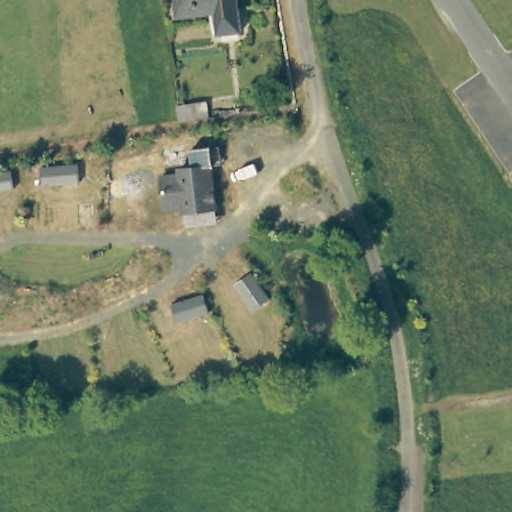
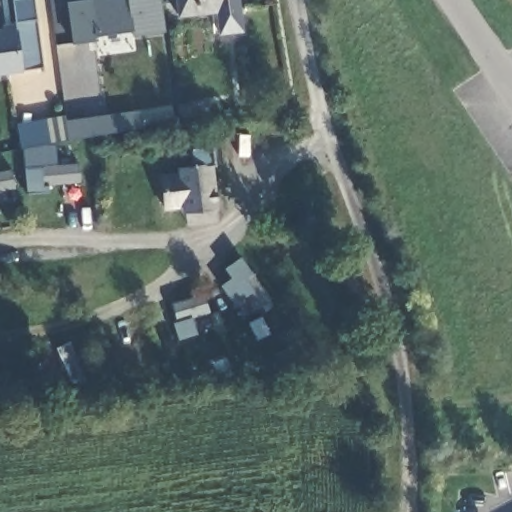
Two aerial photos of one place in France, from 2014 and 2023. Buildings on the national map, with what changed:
new [(131,36),(132,31),(97,36),(97,41),(73,44),(67,2),(80,0),(162,0),(166,31),(131,36)]
unchanged [(214,29),(211,6),(173,11),(172,0),(233,0),(237,26),(214,29)]
new [(44,68),(24,69),(24,71),(0,75),(0,29),(3,29),(2,25),(38,20),(44,68)]
new [(141,109),(142,113),(177,108),(207,103),(209,116),(179,121),(68,141),(65,120),(141,109)]
demolished [(177,108),(207,103),(209,116),(179,121),(177,108)]
new [(17,123),(65,115),(68,141),(21,148),(17,123)]
unchanged [(187,229),(186,212),(164,212),(160,175),(178,174),(177,168),(191,166),(189,149),(219,145),(222,165),(212,165),(217,223),(187,229)]
new [(81,182),(48,185),(49,192),(27,194),(24,168),(79,163),(81,182)]
new [(15,189),(0,192),(0,171),(11,169),(15,189)]

